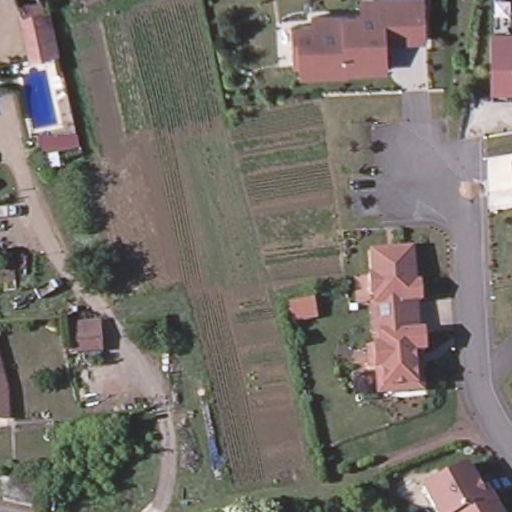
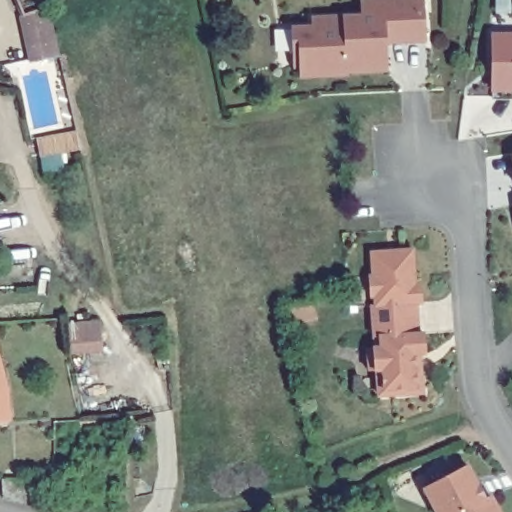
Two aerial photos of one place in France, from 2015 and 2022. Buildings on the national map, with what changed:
unchanged [(15,13),(11,0),(34,0),(37,6),(45,3),(48,21),(51,34),(54,49),(25,54),(22,40),(20,26),(15,13)]
unchanged [(290,51),(289,28),(310,27),(310,19),(360,16),(361,26),(372,26),(370,1),(381,0),(421,0),(423,40),(384,42),(385,70),(345,71),(345,74),(297,76),(296,51),(290,51)]
unchanged [(512,39),(512,89),(490,89),(490,39),(512,39)]
unchanged [(511,154),(512,154),(512,161),(511,154)]
unchanged [(370,276),(369,252),(410,249),(412,284),(417,284),(419,302),(414,303),(415,333),(420,333),(422,353),(417,353),(419,390),(405,391),(405,394),(388,395),(387,393),(374,393),(372,370),(365,371),(364,348),(371,347),(367,276),(370,276)]
unchanged [(43,329),(0,333),(0,314),(42,311),(43,329)]
unchanged [(5,415),(0,415),(0,376),(2,383),(5,415)]
unchanged [(475,484),(474,486),(479,497),(482,498),(482,499),(488,496),(497,512),(435,512),(422,488),(465,465),(475,484)]
unchanged [(41,472),(41,501),(14,496),(9,496),(8,475),(14,474),(41,472)]

